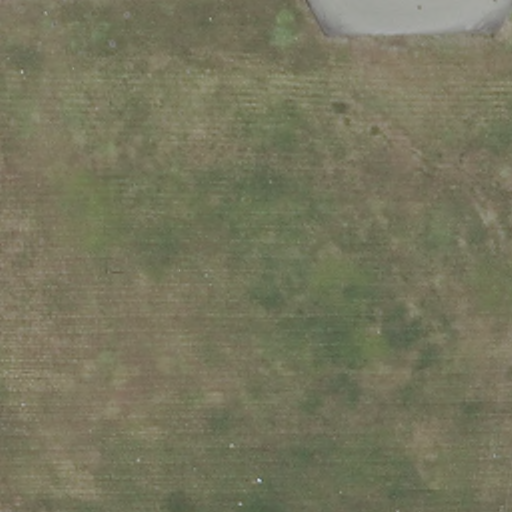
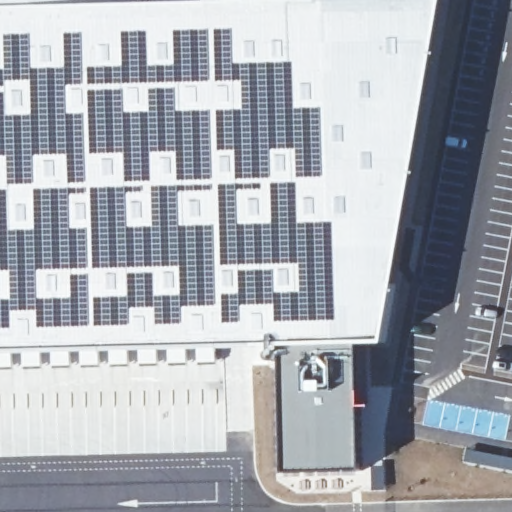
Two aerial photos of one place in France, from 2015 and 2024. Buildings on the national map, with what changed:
new [(387,345),(362,345),(334,342),(282,344),(217,348),(217,362),(198,363),(197,349),(70,351),(44,353),(0,353),(0,0),(447,0),(387,345)]
new [(334,342),(362,345),(363,468),(287,470),(282,344),(334,342)]
new [(2,443),(43,443),(45,450),(53,450),(53,453),(22,456),(0,457),(0,438),(2,443)]
new [(512,455),(512,470),(464,461),(467,446),(512,455)]

